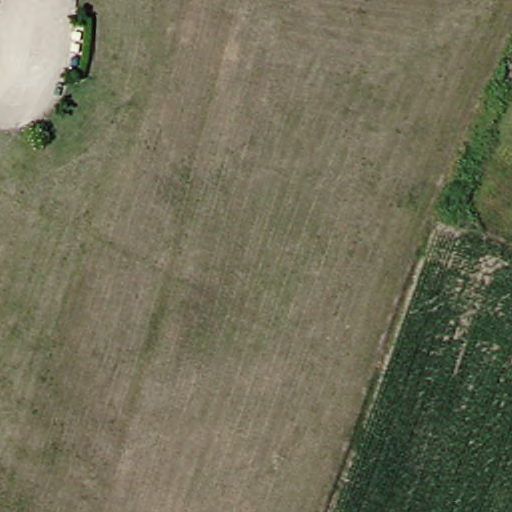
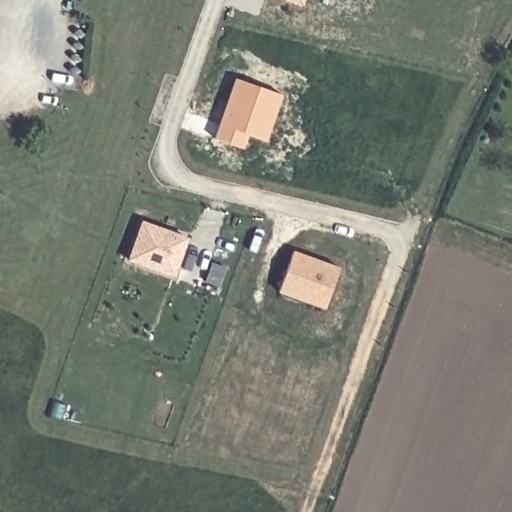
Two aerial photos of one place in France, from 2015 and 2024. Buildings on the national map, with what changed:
new [(303,7),(281,0),(305,0),(303,7)]
new [(236,79),(282,93),(268,140),(247,135),(242,147),(217,140),(236,79)]
new [(142,221),(189,238),(175,277),(127,261),(142,221)]
new [(281,291),(294,253),(339,269),(325,307),(281,291)]

